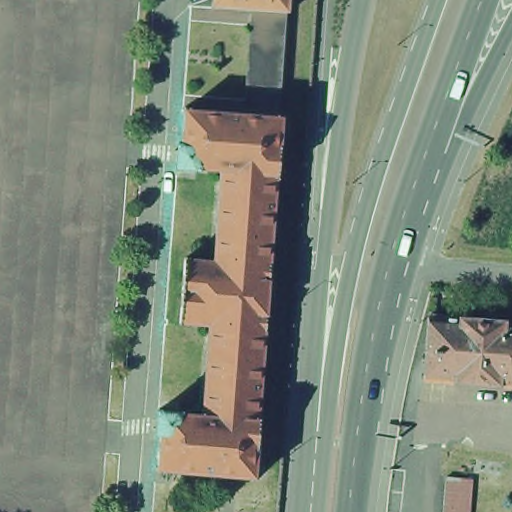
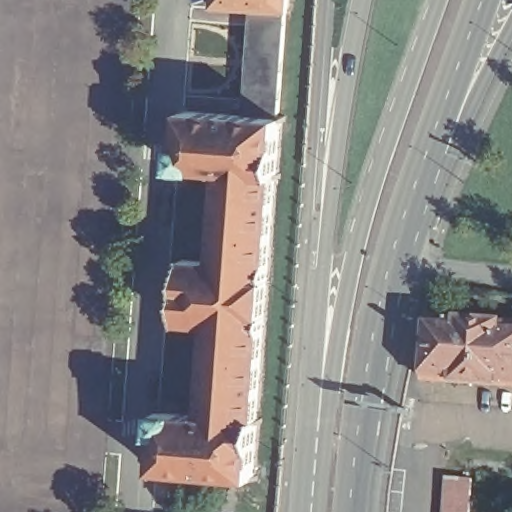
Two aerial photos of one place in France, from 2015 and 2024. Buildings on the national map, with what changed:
unchanged [(287,1),(285,19),(282,19),(248,16),(209,13),(210,0),(299,0),(299,2),(287,1)]
unchanged [(275,123),(242,120),(248,16),(282,19),(275,123)]
unchanged [(274,185),(273,185),(255,425),(256,426),(251,485),(153,475),(156,440),(151,440),(153,416),(196,417),(203,331),(176,328),(180,263),(210,264),(216,177),(173,173),(175,150),(177,150),(181,115),(242,120),(275,123),(279,124),(274,185)]
unchanged [(415,384),(420,321),(512,328),(512,392),(415,384)]
unchanged [(468,474),(465,512),(438,512),(442,471),(468,474)]

